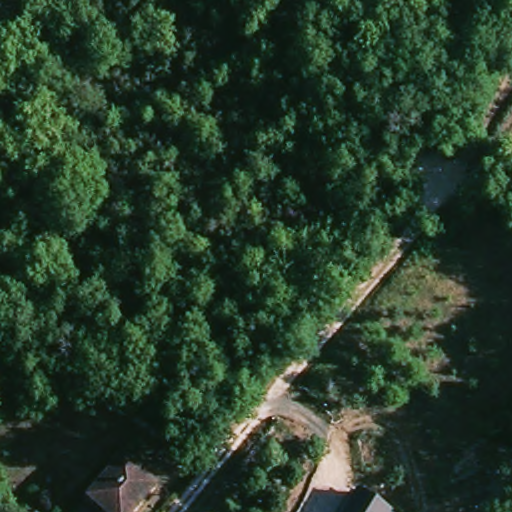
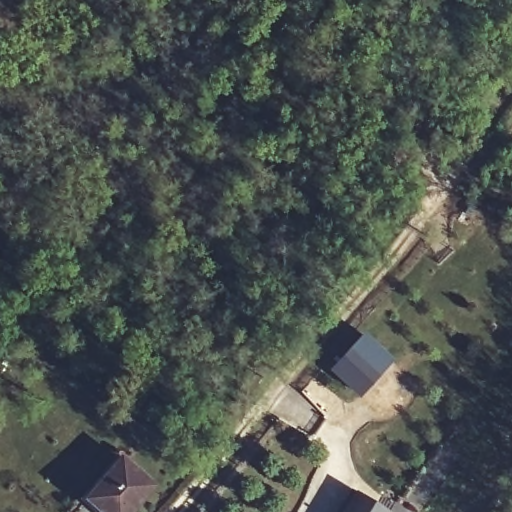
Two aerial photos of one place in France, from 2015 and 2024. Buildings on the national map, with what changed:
new [(395,361),(360,398),(330,369),(365,332),(395,361)]
unchanged [(118,466),(147,496),(137,506),(131,512),(101,512),(85,497),(98,484),(118,466)]
unchanged [(392,512),(342,512),(355,490),(392,512)]

